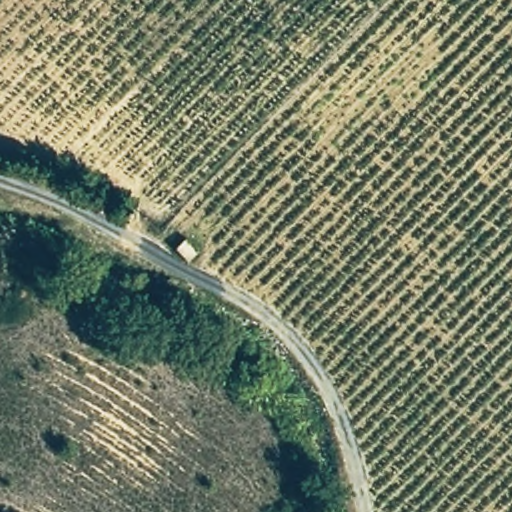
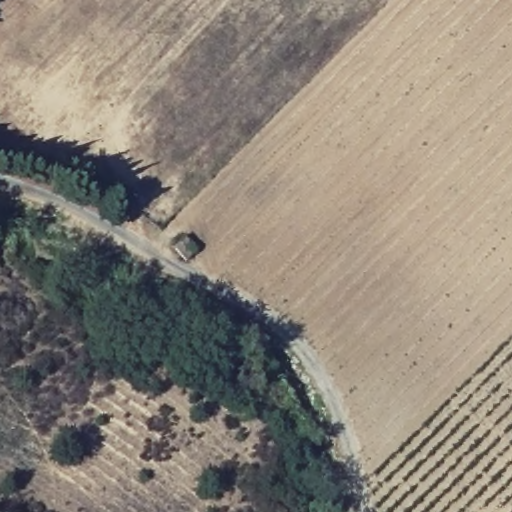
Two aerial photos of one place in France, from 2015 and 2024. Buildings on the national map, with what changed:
unchanged [(186,237),(197,253),(186,260),(173,247),(186,237)]

